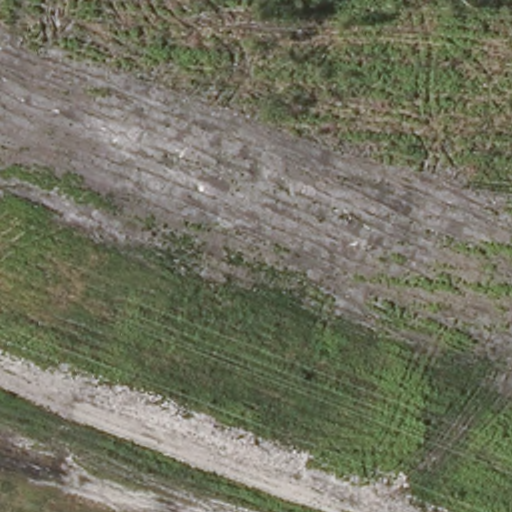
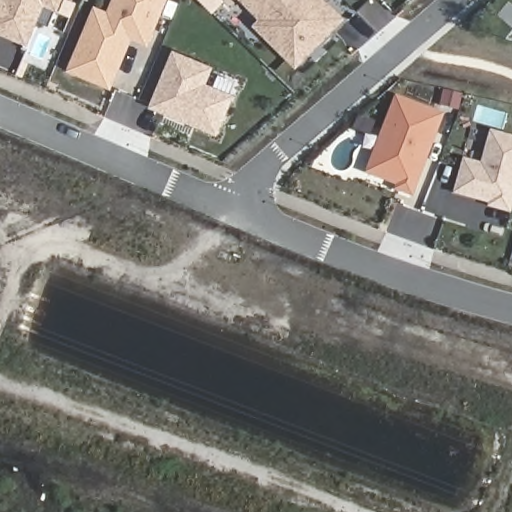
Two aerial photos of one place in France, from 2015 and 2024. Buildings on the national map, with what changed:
new [(45,2),(28,42),(0,30),(0,0),(62,0),(59,8),(45,2)]
new [(110,15),(116,0),(165,0),(146,43),(127,35),(123,44),(126,46),(110,85),(71,69),(94,15),(96,9),(110,15)]
new [(213,14),(198,0),(219,0),(222,3),(213,14)]
new [(322,42),(302,19),(256,3),(249,10),(238,0),(327,0),(346,19),(322,42)]
new [(258,18),(249,10),(256,3),(302,19),(322,42),(296,68),(253,24),(258,18)]
new [(177,55),(212,70),(204,85),(232,97),(218,132),(196,124),(197,120),(190,116),(189,120),(155,106),(177,55)]
new [(452,112),(436,108),(440,92),(456,96),(452,112)]
new [(436,118),(408,191),(369,176),(385,135),(380,133),(392,101),(436,118)]
new [(503,212),(486,207),(487,204),(451,194),(460,164),(478,169),(487,135),(512,143),(512,181),(503,212)]

